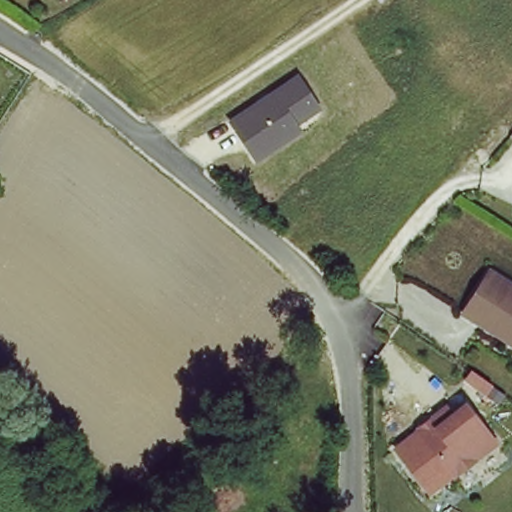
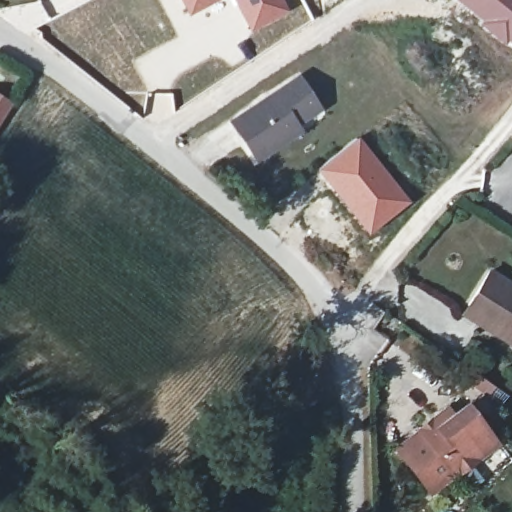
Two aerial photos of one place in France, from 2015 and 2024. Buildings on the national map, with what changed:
new [(188,19),(178,0),(222,0),(188,19)]
new [(292,12),(251,36),(230,0),(285,0),(292,12)]
new [(491,34),(453,0),(512,0),(512,49),(491,34)]
unchanged [(229,121),(297,74),(322,110),(297,126),(302,133),(257,162),(229,121)]
new [(14,102),(0,123),(0,94),(14,102)]
new [(357,135),(411,201),(367,233),(314,170),(357,135)]
unchanged [(512,136),(512,139),(510,138),(512,136)]
unchanged [(487,271),(512,287),(512,346),(511,345),(460,313),(466,304),(487,271)]
unchanged [(455,475),(418,425),(462,392),(503,442),(455,475)]

